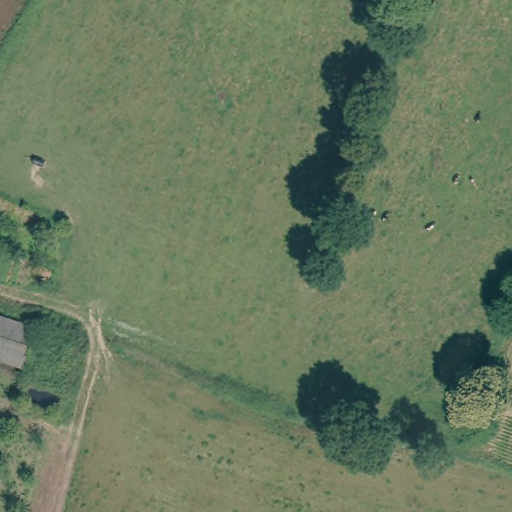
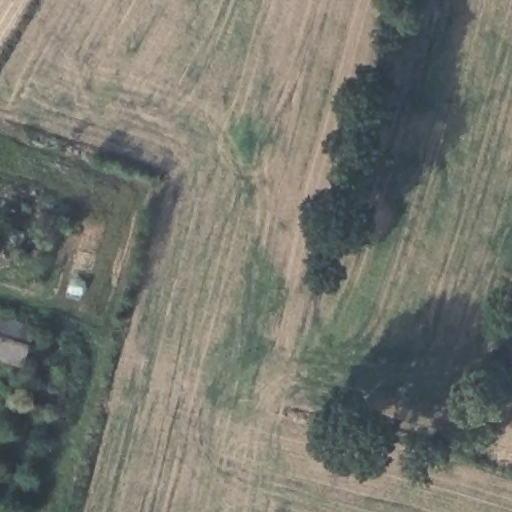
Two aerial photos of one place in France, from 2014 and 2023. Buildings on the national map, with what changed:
unchanged [(23,366),(0,359),(0,315),(36,327),(23,366)]

